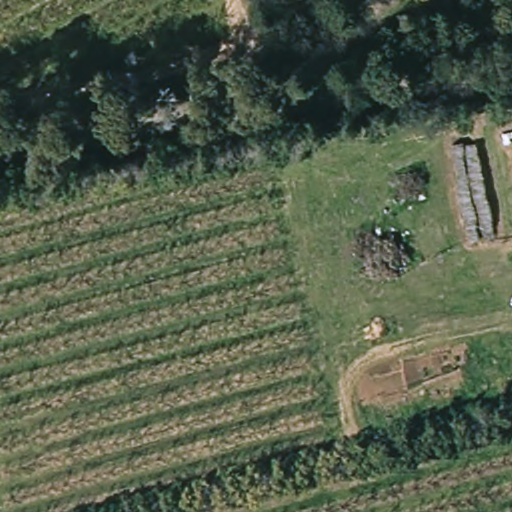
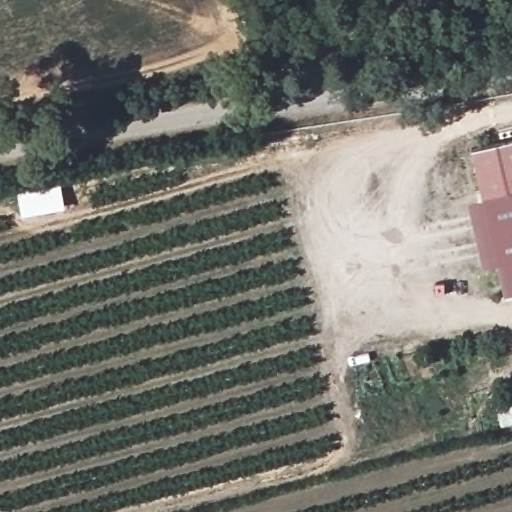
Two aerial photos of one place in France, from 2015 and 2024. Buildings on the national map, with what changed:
new [(506,296),(497,263),(482,267),(467,201),(480,198),(470,149),(512,139),(512,294),(506,296)]

